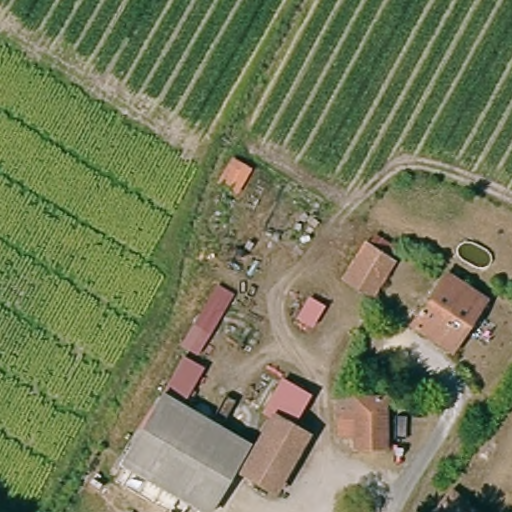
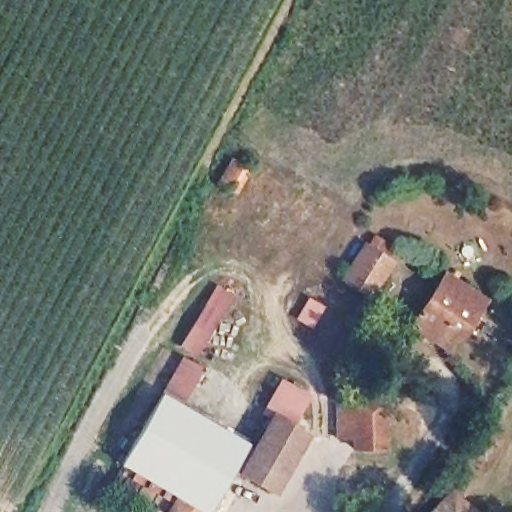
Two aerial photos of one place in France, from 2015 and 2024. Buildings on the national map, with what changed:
unchanged [(215,184),(231,156),(253,168),(238,196),(215,184)]
unchanged [(385,257),(362,292),(342,281),(363,246),(385,257)]
unchanged [(179,345),(216,283),(235,294),(199,356),(179,345)]
unchanged [(445,283),(485,309),(457,354),(416,328),(445,283)]
unchanged [(206,370),(190,400),(166,388),(183,359),(206,370)]
unchanged [(236,483),(239,478),(257,443),(264,447),(278,419),(265,412),(271,400),(283,377),(307,393),(290,421),(292,426),(314,437),(281,504),(236,483)]
unchanged [(232,474),(212,512),(174,512),(114,481),(158,395),(257,443),(239,478),(232,474)]
unchanged [(391,397),(391,403),(392,456),(350,455),(351,439),(330,440),(329,396),(332,396),(391,397)]
unchanged [(465,512),(426,512),(443,492),(465,512)]

